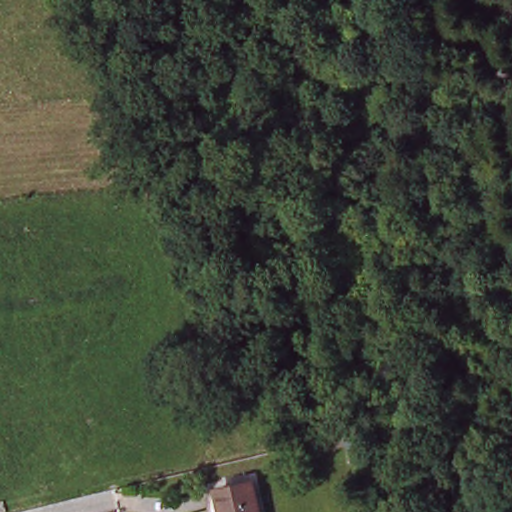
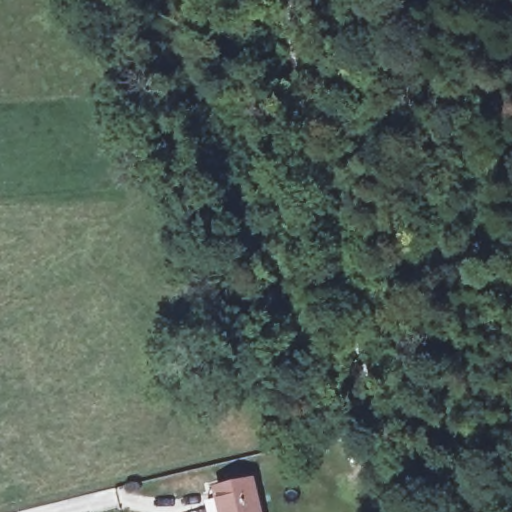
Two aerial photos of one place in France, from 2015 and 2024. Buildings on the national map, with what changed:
unchanged [(257,512),(222,512),(218,496),(250,487),(257,512)]

